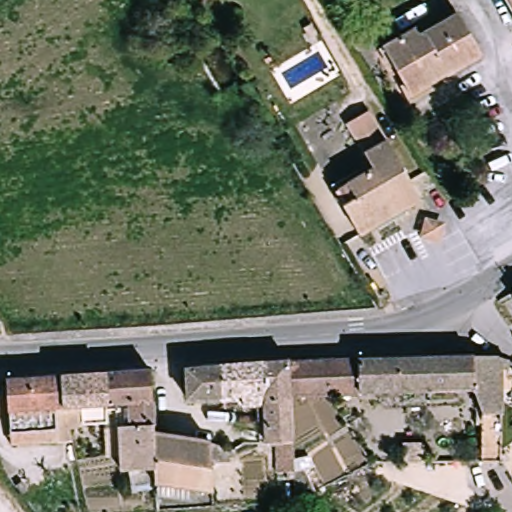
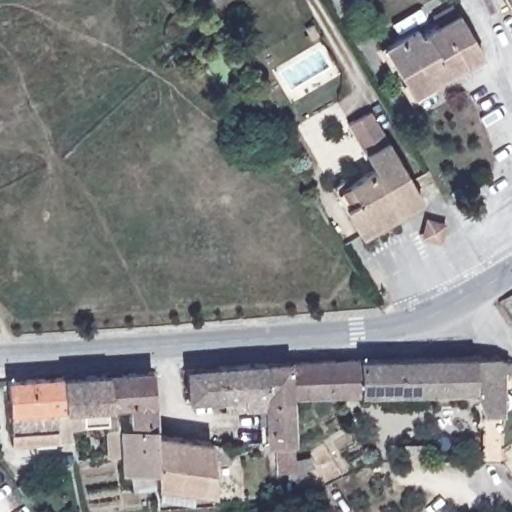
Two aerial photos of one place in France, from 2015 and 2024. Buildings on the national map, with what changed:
unchanged [(512,0),(512,40),(489,0),(512,0)]
unchanged [(407,81),(395,60),(386,45),(394,40),(418,25),(425,36),(453,20),(474,57),(431,82),(413,92),(407,81)]
unchanged [(361,176),(365,182),(374,176),(348,131),(370,117),(422,204),(361,240),(343,208),(334,192),(361,176)]
unchanged [(512,301),(512,302),(511,302),(512,301)]
unchanged [(490,358),(494,357),(500,360),(498,420),(495,467),(486,467),(475,467),(478,422),(472,394),(432,393),(432,359),(490,358)]
unchanged [(432,359),(432,393),(358,392),(356,361),(432,359)]
unchanged [(356,361),(358,392),(326,398),(324,362),(356,361)]
unchanged [(324,362),(326,398),(290,400),(289,364),(324,362)]
unchanged [(262,366),(289,364),(290,400),(293,475),(275,475),(273,446),(257,446),(254,418),(240,418),(239,410),(242,409),(262,407),(261,366),(262,366)]
unchanged [(261,366),(262,407),(242,409),(242,400),(217,401),(217,369),(261,366)]
unchanged [(152,368),(151,434),(151,448),(113,452),(117,405),(60,407),(60,375),(152,368)]
unchanged [(217,369),(217,401),(183,403),(184,372),(217,369)]
unchanged [(11,430),(10,408),(7,377),(10,377),(60,375),(60,407),(55,407),(56,428),(11,430)]
unchanged [(207,441),(209,487),(152,484),(151,448),(151,434),(207,441)]

